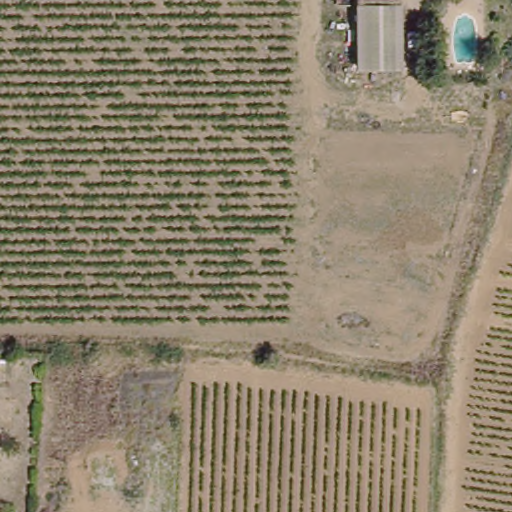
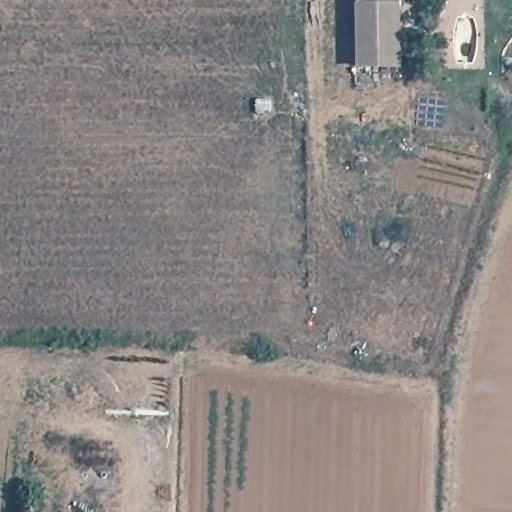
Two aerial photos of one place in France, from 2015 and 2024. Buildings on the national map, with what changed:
unchanged [(401,6),(400,65),(359,67),(359,9),(401,6)]
unchanged [(6,388),(0,388),(0,366),(5,365),(6,388)]

